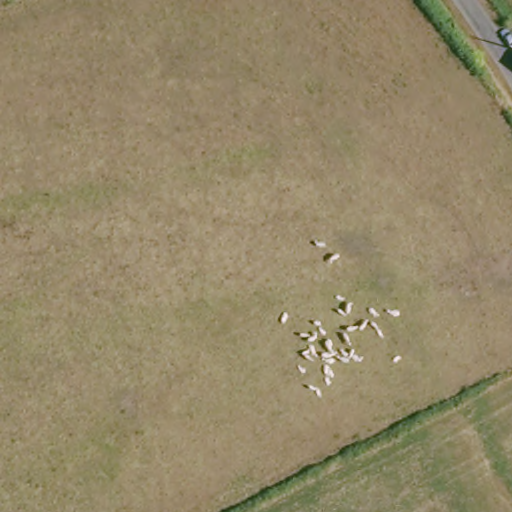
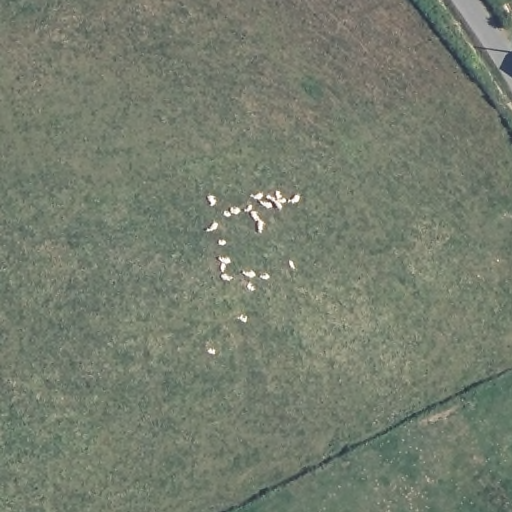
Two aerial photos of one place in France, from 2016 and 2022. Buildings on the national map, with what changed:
[]

